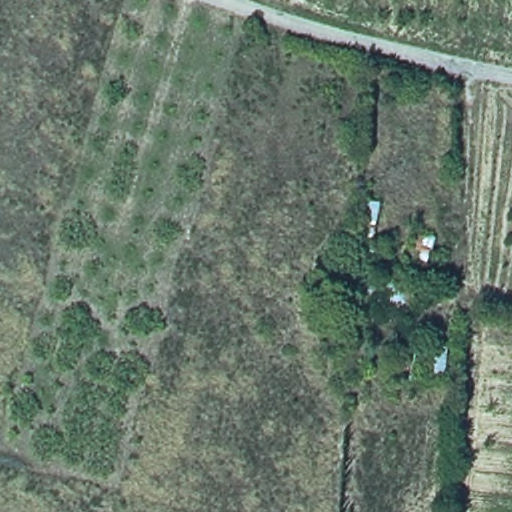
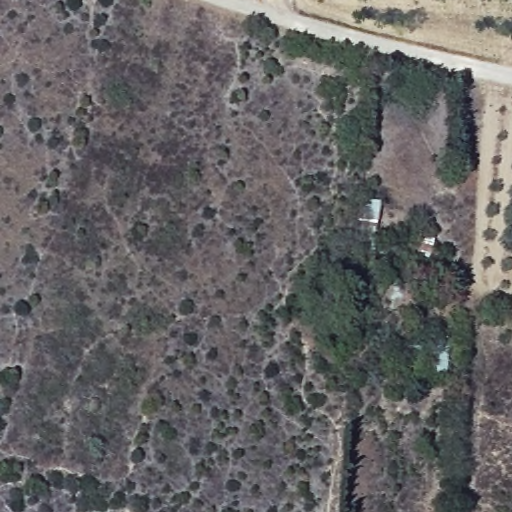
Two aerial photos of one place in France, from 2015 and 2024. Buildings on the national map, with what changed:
unchanged [(352,300),(356,269),(407,281),(406,307),(352,300)]
unchanged [(423,378),(395,374),(400,342),(427,349),(423,378)]

